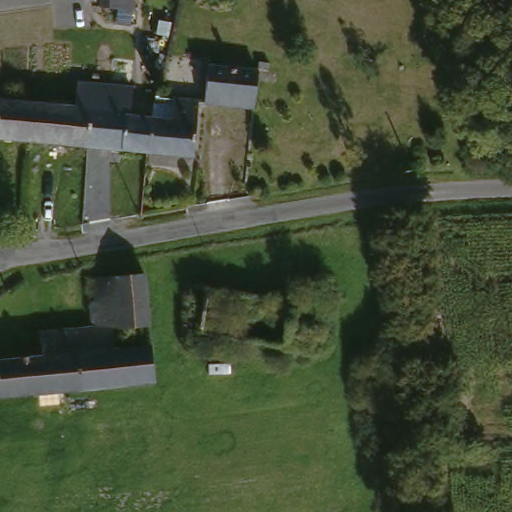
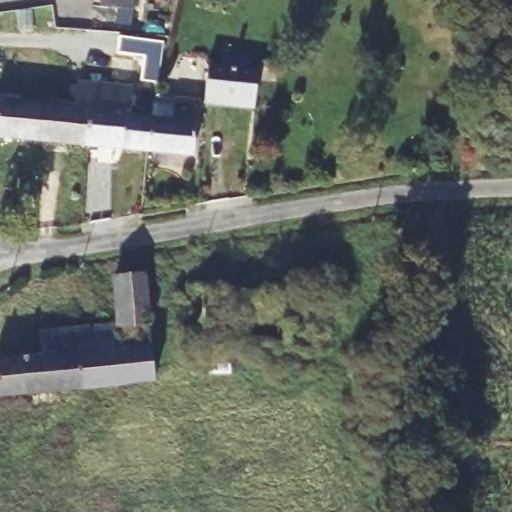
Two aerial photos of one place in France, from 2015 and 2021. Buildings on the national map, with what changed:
unchanged [(101,8),(102,0),(135,0),(134,10),(101,8)]
unchanged [(256,75),(251,113),(198,107),(203,69),(256,75)]
unchanged [(67,114),(69,88),(126,95),(125,121),(144,124),(137,157),(80,152),(81,115),(67,114)]
unchanged [(81,115),(80,152),(9,145),(0,144),(0,106),(13,108),(67,114),(81,115)]
unchanged [(144,124),(148,109),(166,110),(166,106),(191,108),(187,161),(137,157),(144,124)]
unchanged [(145,281),(152,385),(0,402),(0,365),(40,361),(38,337),(90,331),(86,287),(145,281)]

